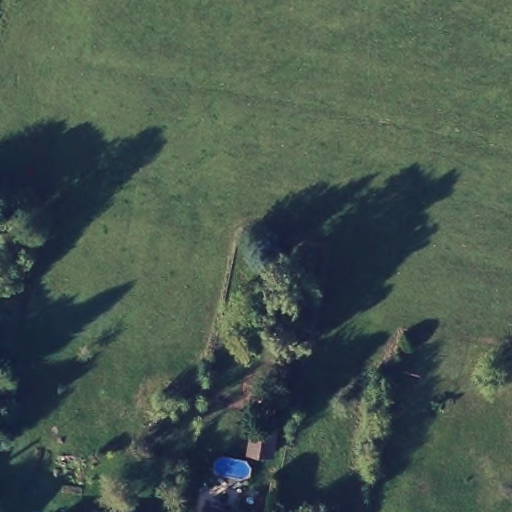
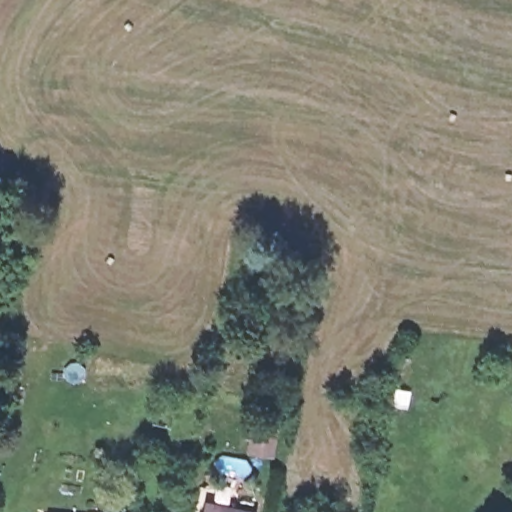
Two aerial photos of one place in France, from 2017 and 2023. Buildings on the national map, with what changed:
unchanged [(274,430),(270,455),(254,452),(249,452),(254,427),(259,428),(274,430)]
unchanged [(253,512),(204,512),(206,499),(254,509),(253,512)]
unchanged [(88,509),(98,511),(97,512),(87,512),(88,509)]

